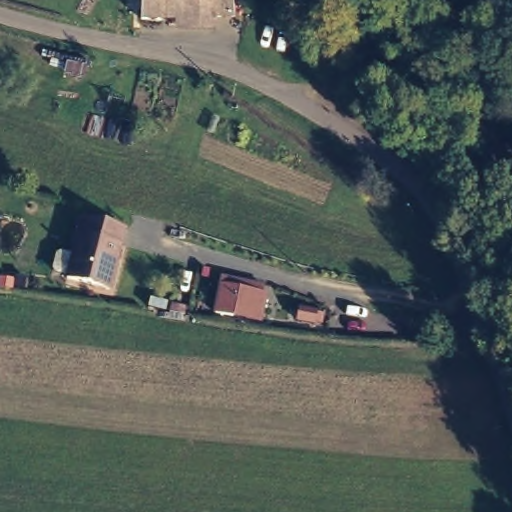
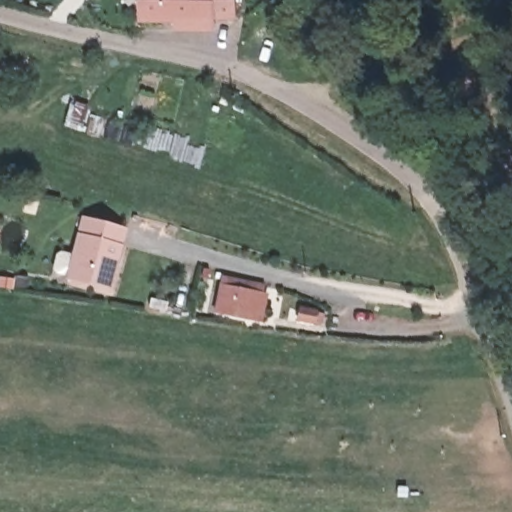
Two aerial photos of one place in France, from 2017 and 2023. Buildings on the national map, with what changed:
unchanged [(224,16),(202,16),(201,22),(130,21),(129,0),(224,0),(224,16)]
unchanged [(109,290),(65,281),(79,216),(124,227),(109,290)]
unchanged [(215,286),(244,287),(240,295),(260,300),(257,316),(231,311),(226,326),(207,320),(215,286)]

